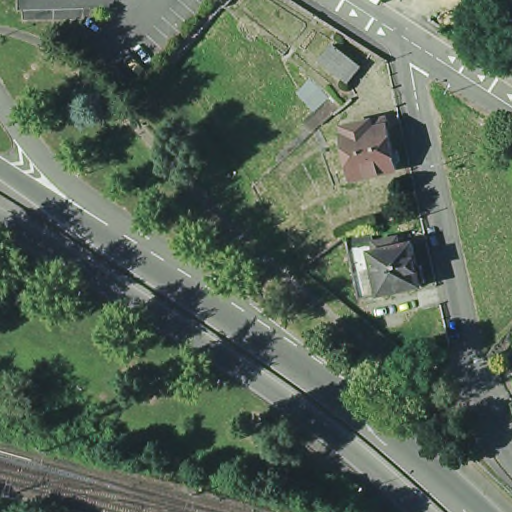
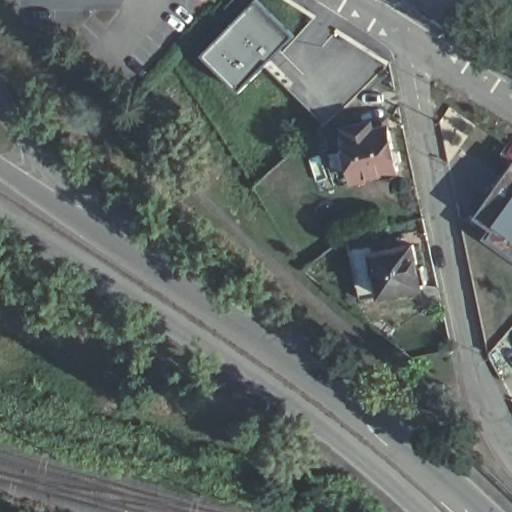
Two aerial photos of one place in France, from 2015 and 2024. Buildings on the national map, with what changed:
new [(258,0),(294,35),(239,90),(234,86),(235,83),(202,51),(252,0),(258,0)]
demolished [(332,43),(361,66),(348,83),(319,60),(332,43)]
demolished [(315,134),(304,120),(331,95),(347,106),(315,134)]
unchanged [(399,155),(400,165),(397,169),(397,174),(352,184),(343,140),(346,140),(345,131),(372,126),(386,122),(388,130),(393,153),(399,155)]
new [(480,236),(487,224),(470,210),(510,158),(512,159),(512,257),(480,236)]
unchanged [(367,236),(393,231),(395,242),(417,237),(420,247),(432,244),(437,266),(442,265),(445,283),(441,283),(442,287),(381,299),(367,236)]

